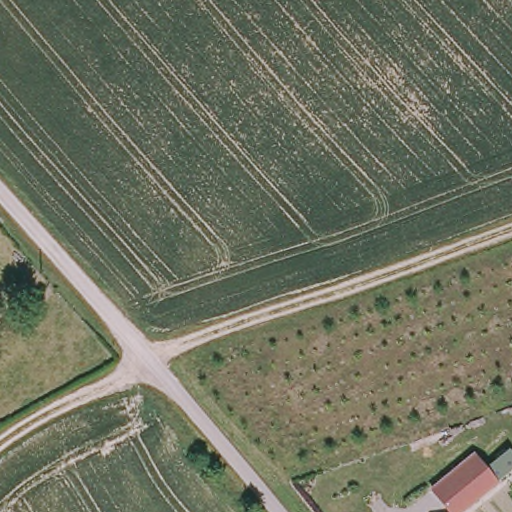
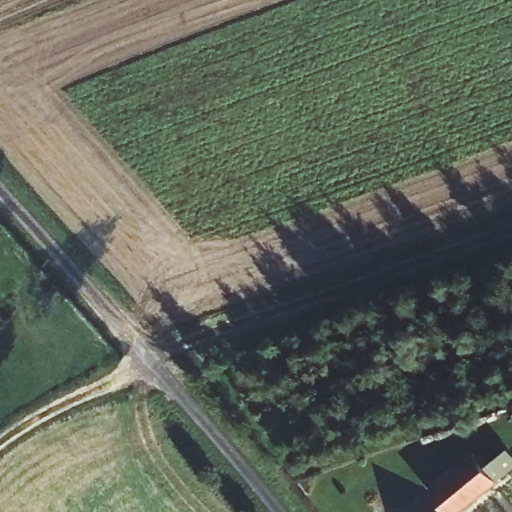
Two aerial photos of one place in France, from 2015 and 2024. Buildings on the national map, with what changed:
unchanged [(460,512),(447,512),(428,490),(473,451),(496,483),(460,512)]

